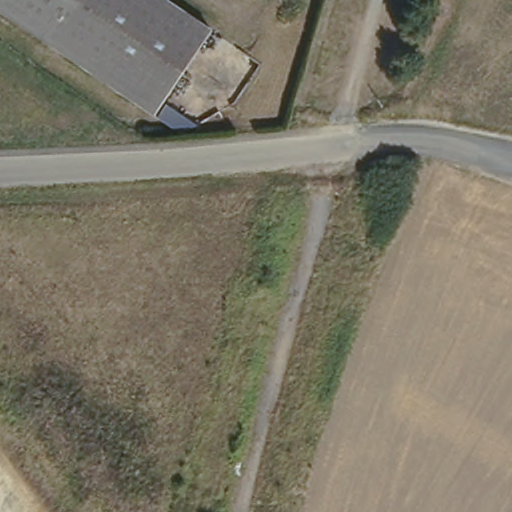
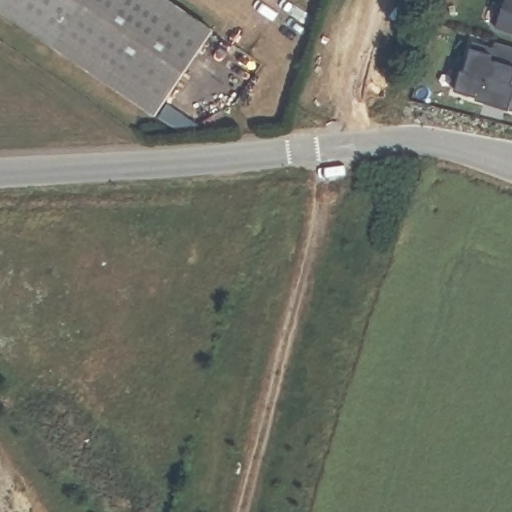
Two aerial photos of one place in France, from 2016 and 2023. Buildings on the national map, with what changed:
unchanged [(161,105),(0,8),(0,0),(180,0),(215,21),(161,105)]
new [(496,28),(505,0),(512,0),(512,33),(496,28)]
new [(477,99),(477,96),(456,89),(462,69),(465,70),(473,41),(494,48),(496,42),(512,47),(512,110),(477,99)]
new [(184,134),(175,128),(158,117),(167,104),(183,115),(199,126),(184,134)]

